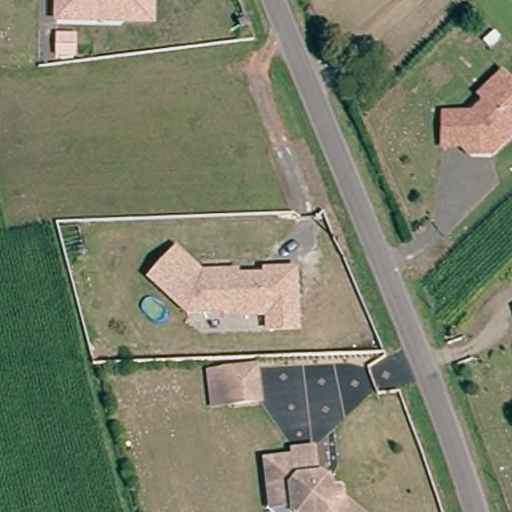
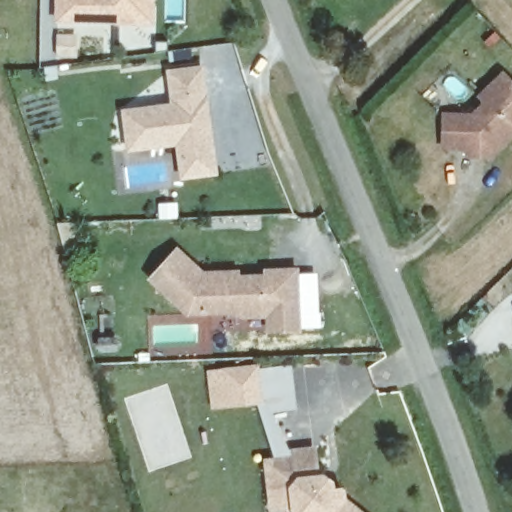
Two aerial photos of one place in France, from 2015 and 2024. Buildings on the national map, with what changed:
unchanged [(58,0),(154,0),(153,20),(59,18),(58,0)]
new [(171,102),(166,68),(205,63),(218,175),(180,179),(176,144),(127,151),(121,108),(171,102)]
unchanged [(471,157),(464,149),(446,149),(447,117),(476,118),(486,108),(486,102),(483,98),(498,84),(505,77),(512,85),(512,139),(493,158),(471,157)]
unchanged [(269,330),(269,315),(243,316),(228,311),(188,313),(151,279),(178,250),(203,273),(232,272),(232,277),(268,276),(297,275),(298,295),(299,329),(269,330)]
unchanged [(208,382),(208,371),(256,369),(256,403),(226,405),(210,405),(208,382)]
unchanged [(297,498),(276,499),(275,453),(301,453),(301,445),(319,443),(321,475),(322,476),(326,472),(337,479),(335,484),(337,485),(340,482),(348,487),(344,495),(366,512),(312,512),(312,511),(310,512),(306,512),(297,505),(297,498)]

